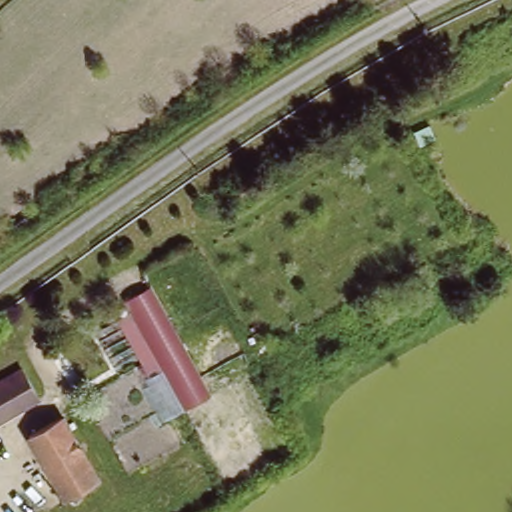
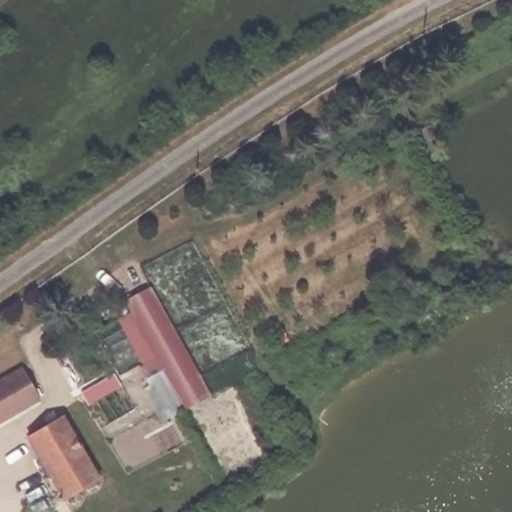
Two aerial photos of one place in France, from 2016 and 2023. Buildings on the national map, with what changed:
unchanged [(145,292),(207,398),(187,411),(127,304),(145,292)]
unchanged [(18,372),(36,404),(10,417),(0,397),(0,383),(18,372)]
unchanged [(10,417),(0,422),(0,397),(10,417)]
unchanged [(58,419),(95,483),(59,501),(25,438),(58,419)]

